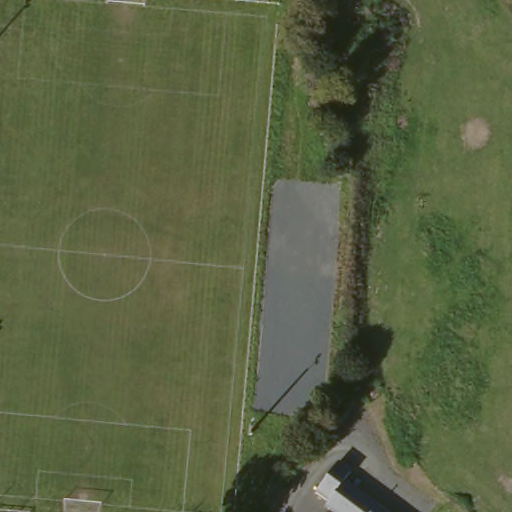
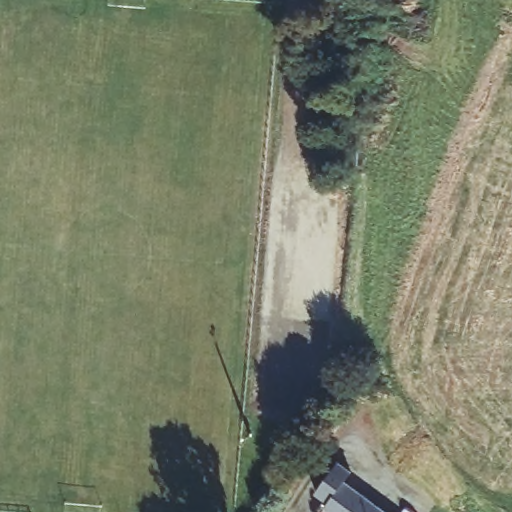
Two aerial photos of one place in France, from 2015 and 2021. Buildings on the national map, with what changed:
unchanged [(345,481),(387,512),(330,512),(323,507),(326,499),(314,490),(338,461),(351,470),(345,481)]

